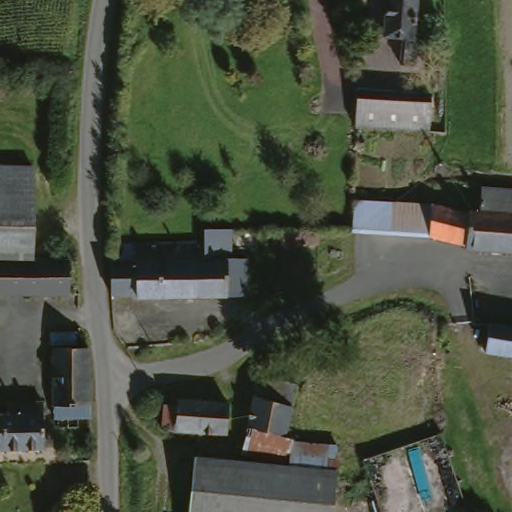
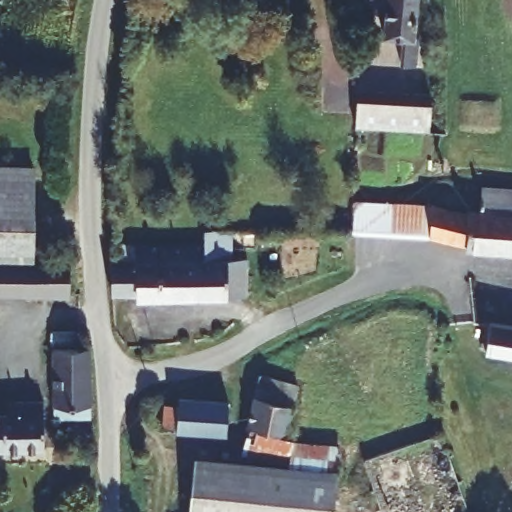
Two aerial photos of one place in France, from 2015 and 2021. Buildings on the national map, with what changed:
unchanged [(418,31),(428,32),(423,65),(403,62),(406,29),(387,28),(390,0),(421,0),(418,31)]
unchanged [(442,93),(438,125),(366,118),(369,83),(442,93)]
unchanged [(43,252),(0,253),(0,162),(43,162),(43,252)]
unchanged [(445,204),(474,208),(474,204),(487,205),(487,179),(512,180),(512,245),(475,243),(476,237),(360,227),(360,222),(360,198),(445,204)]
unchanged [(236,256),(256,256),(255,294),(141,296),(141,292),(121,293),(119,260),(144,261),(144,243),(163,242),(213,241),(212,229),(233,229),(236,229),(236,256)]
unchanged [(81,251),(81,288),(0,291),(0,253),(43,252),(81,251)]
unchanged [(493,351),(495,320),(512,322),(512,354),(493,351)]
unchanged [(101,415),(60,416),(59,345),(98,345),(101,415)]
unchanged [(310,383),(291,436),(252,420),(273,366),(310,383)]
unchanged [(240,431),(172,427),(173,401),(190,402),(191,396),(243,401),(240,431)]
unchanged [(26,400),(55,400),(56,447),(0,450),(0,410),(26,409),(26,400)]
unchanged [(298,431),(345,434),(343,466),(341,512),(198,512),(200,457),(295,463),(298,431)]

